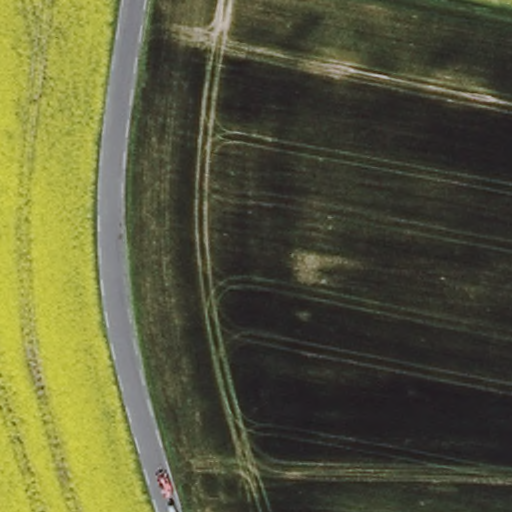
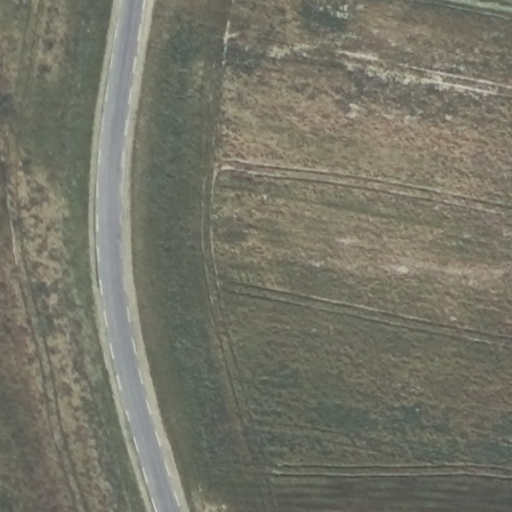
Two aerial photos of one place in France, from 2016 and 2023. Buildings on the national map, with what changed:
[]

